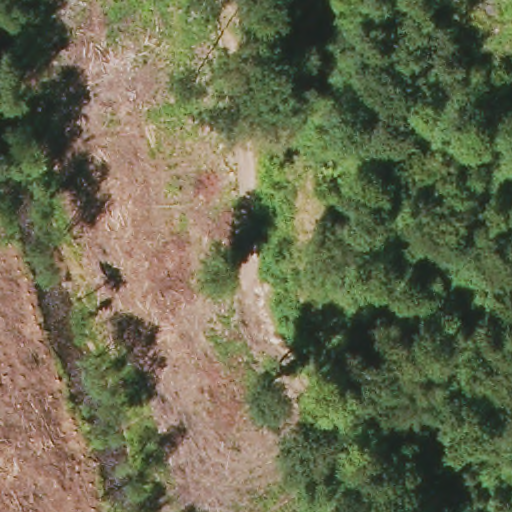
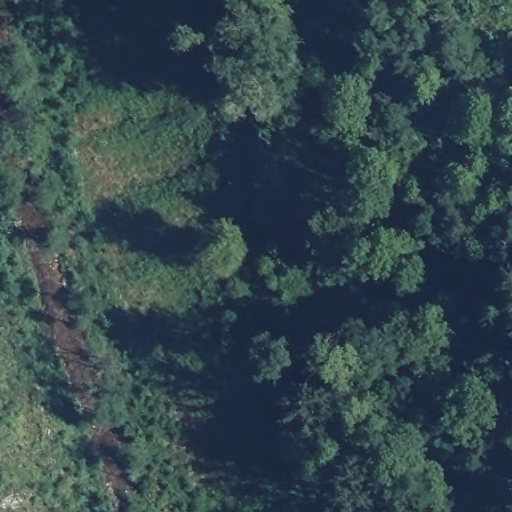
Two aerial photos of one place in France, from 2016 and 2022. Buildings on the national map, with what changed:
[]

